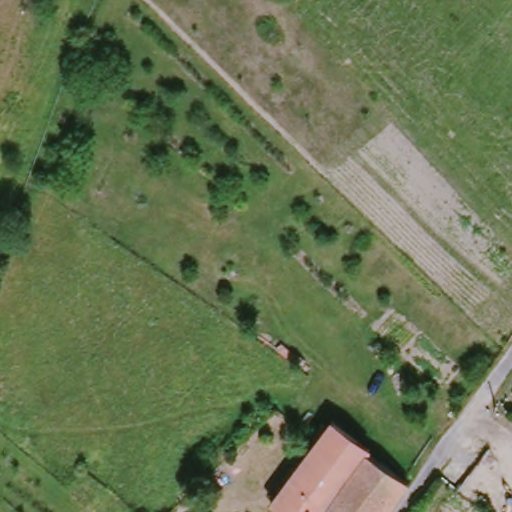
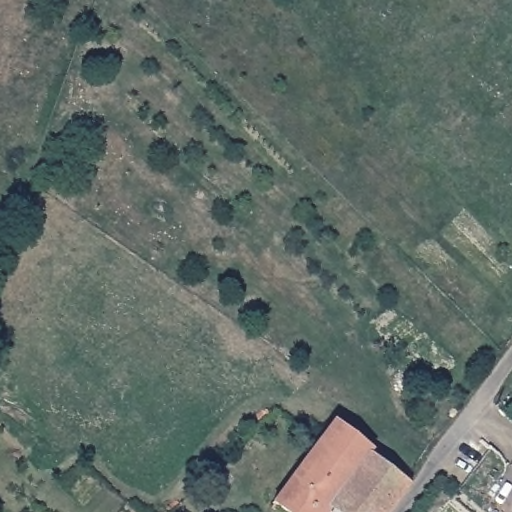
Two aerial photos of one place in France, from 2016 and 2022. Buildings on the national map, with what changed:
unchanged [(360,476),(323,447),(338,427),(362,446),(372,459),(360,476)]
unchanged [(276,507),(323,447),(360,476),(372,459),(414,489),(399,512),(283,512),(276,507)]

